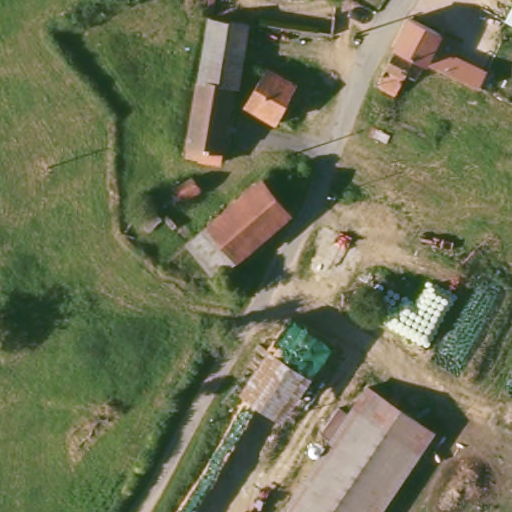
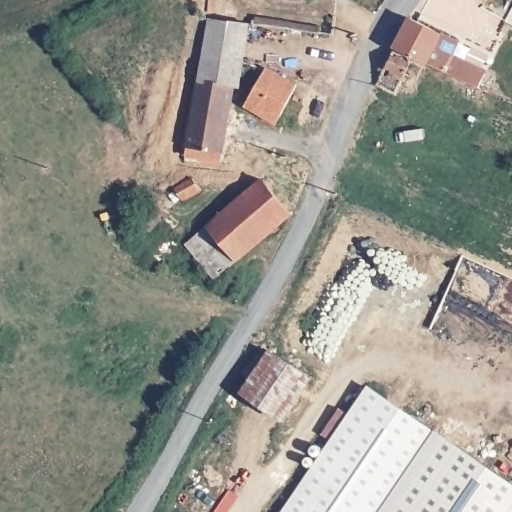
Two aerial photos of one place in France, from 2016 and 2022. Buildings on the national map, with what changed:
unchanged [(205,8),(200,7),(201,0),(207,0),(205,8)]
new [(512,9),(512,25),(505,21),(512,9)]
unchanged [(194,150),(192,139),(184,137),(194,75),(197,53),(202,15),(245,21),(240,57),(236,77),(229,77),(215,156),(194,150)]
unchanged [(437,32),(422,62),(390,46),(407,16),(437,32)]
unchanged [(420,67),(412,82),(401,79),(393,95),(370,85),(389,50),(420,67)]
unchanged [(497,85),(491,96),(452,77),(438,70),(447,52),(460,60),(482,70),(480,75),(497,85)]
unchanged [(296,86),(275,125),(241,106),(245,100),(263,67),(296,86)]
unchanged [(191,176),(200,188),(185,200),(177,189),(191,176)]
unchanged [(212,277),(184,241),(259,180),(286,212),(282,220),(212,277)]
unchanged [(280,416),(240,388),(267,347),(307,375),(280,416)]
unchanged [(428,430),(376,512),(280,512),(360,387),(428,430)]
new [(512,483),(512,512),(376,512),(428,430),(512,483)]

